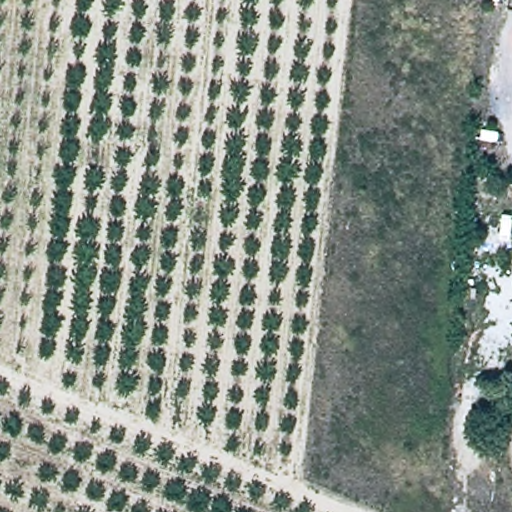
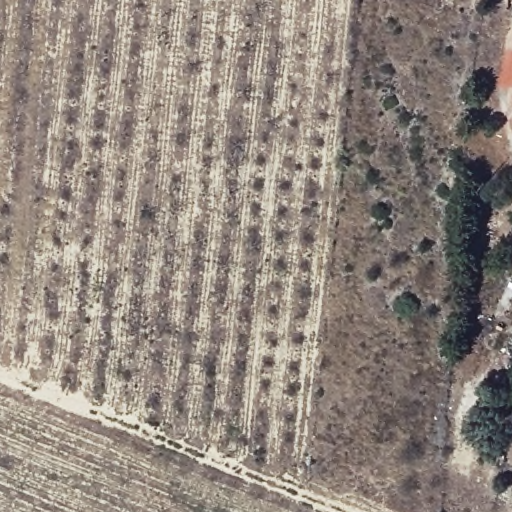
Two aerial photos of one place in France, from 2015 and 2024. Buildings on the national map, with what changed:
unchanged [(502,368),(496,389),(475,383),(481,362),(502,368)]

